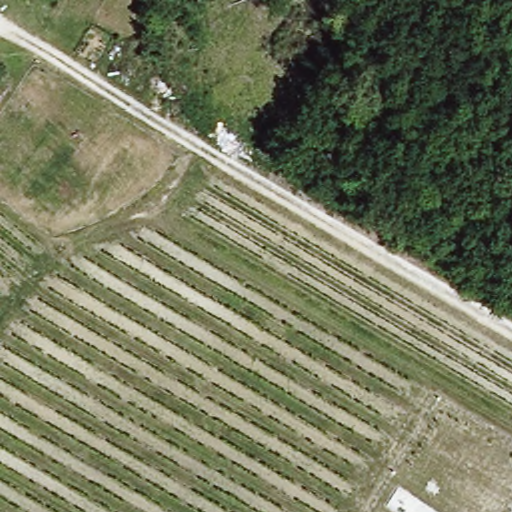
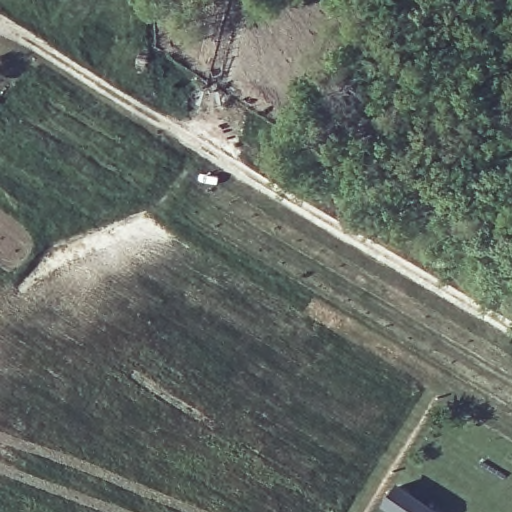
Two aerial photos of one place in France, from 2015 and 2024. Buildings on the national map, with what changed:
new [(383,506),(398,485),(438,512),(393,512),(383,506)]

